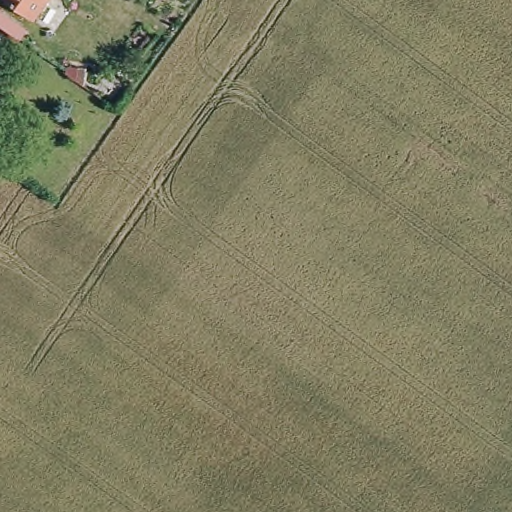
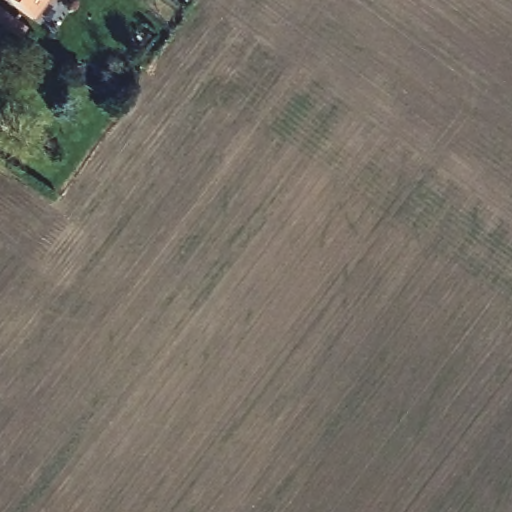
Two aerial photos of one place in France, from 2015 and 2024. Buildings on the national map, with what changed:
unchanged [(28,27),(0,7),(0,0),(47,0),(28,27)]

